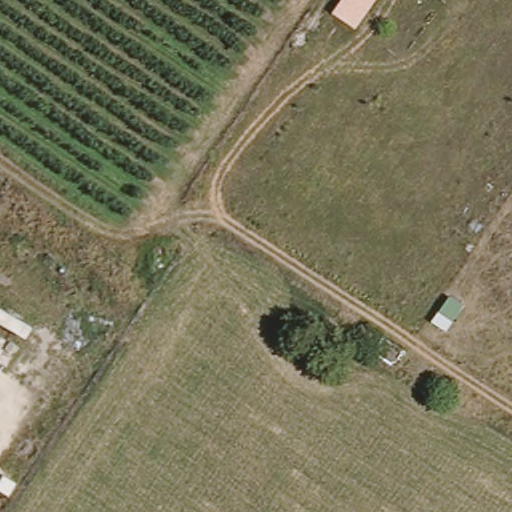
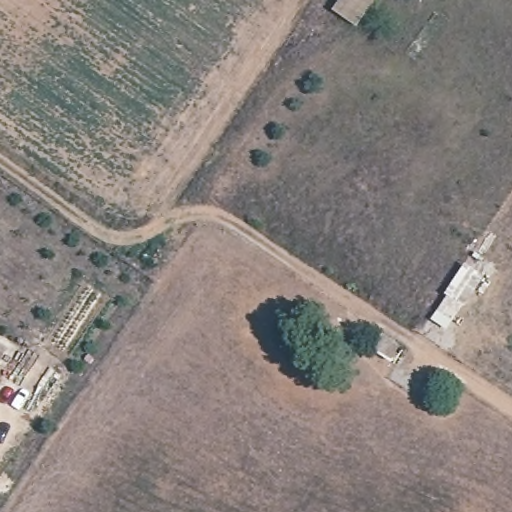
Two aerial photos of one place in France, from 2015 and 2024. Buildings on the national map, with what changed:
unchanged [(342,0),(376,0),(357,27),(333,12),(342,0)]
unchanged [(436,312),(454,321),(447,334),(432,322),(436,312)]
unchanged [(393,334),(384,358),(366,344),(372,325),(393,334)]

